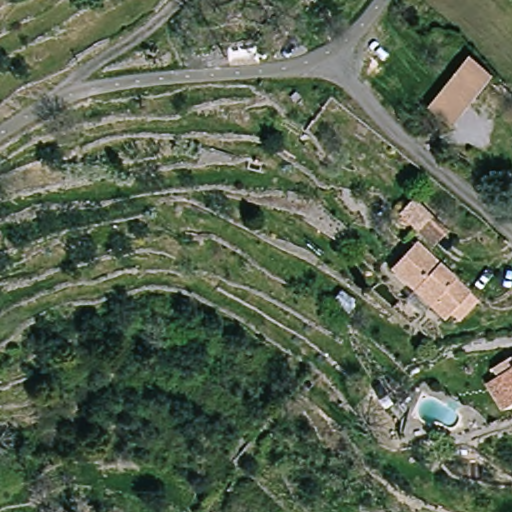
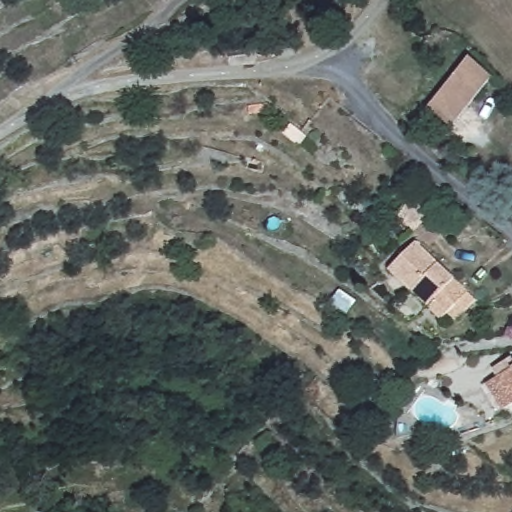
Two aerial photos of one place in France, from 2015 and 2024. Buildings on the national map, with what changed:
unchanged [(460,66),(468,56),(490,78),(452,125),(428,107),(460,66)]
unchanged [(425,215),(412,230),(395,216),(409,200),(425,215)]
unchanged [(390,271),(413,242),(480,291),(467,307),(457,321),(450,315),(390,271)]
unchanged [(492,383),(512,367),(512,400),(508,401),(500,409),(483,390),(492,383)]

